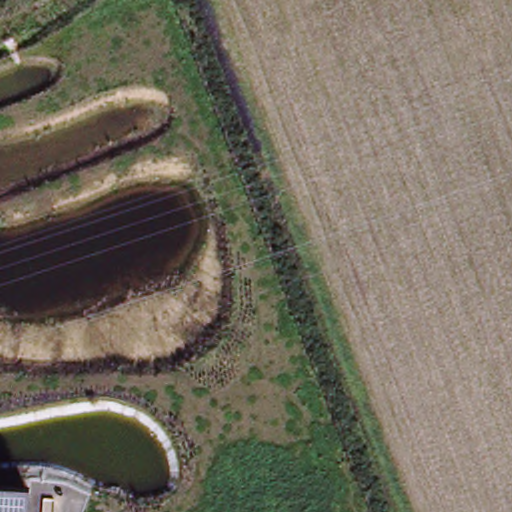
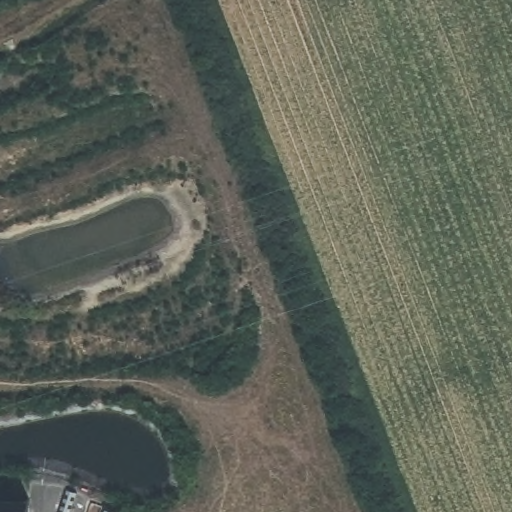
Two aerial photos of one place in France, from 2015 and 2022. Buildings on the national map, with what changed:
unchanged [(28,500),(28,512),(0,512),(0,498),(28,500)]

